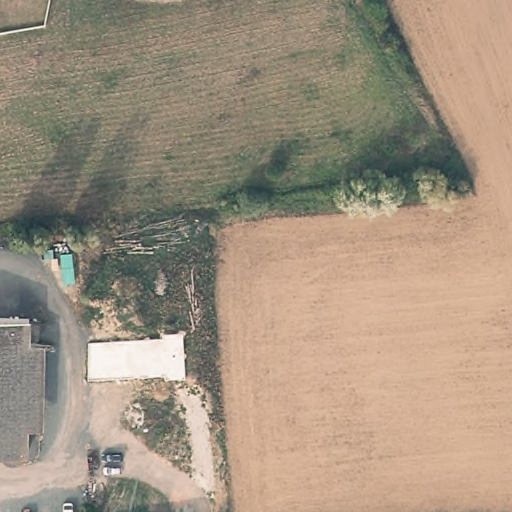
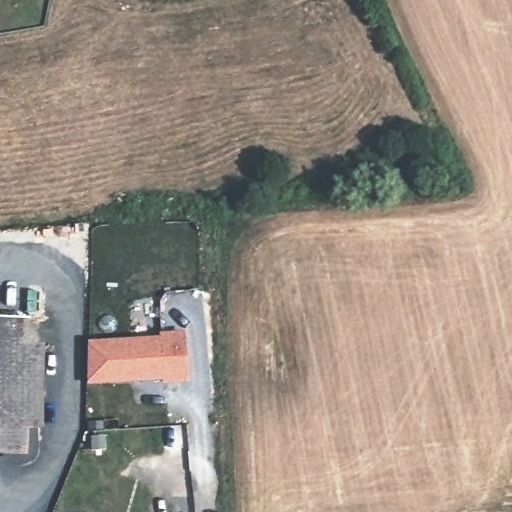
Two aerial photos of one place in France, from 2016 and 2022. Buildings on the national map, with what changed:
unchanged [(23,452),(0,451),(0,318),(26,319),(23,452)]
new [(159,331),(184,330),(187,382),(163,383),(162,380),(87,383),(86,339),(159,335),(159,331)]

